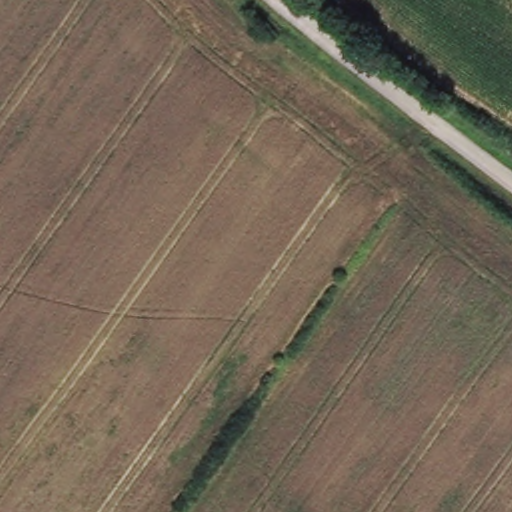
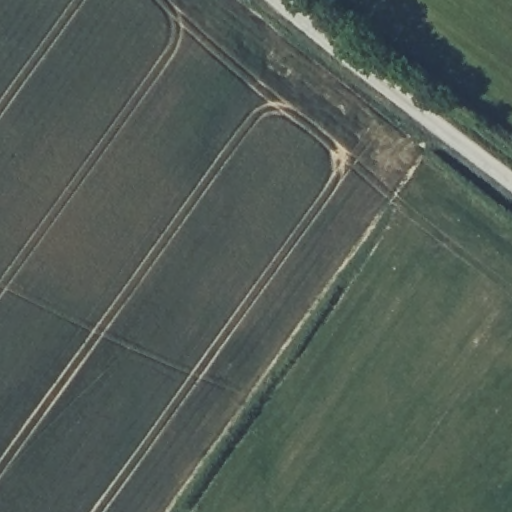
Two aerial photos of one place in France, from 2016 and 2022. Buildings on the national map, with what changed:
[]

